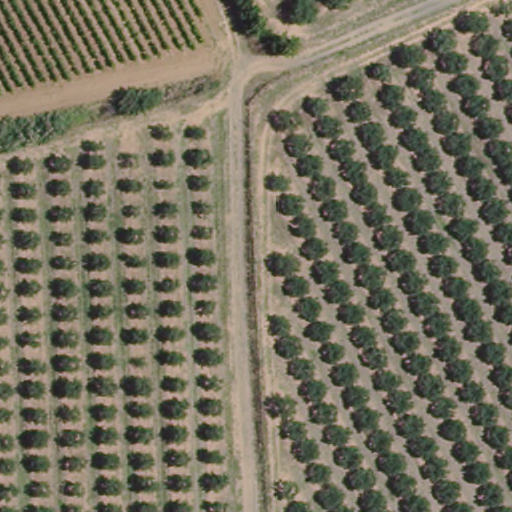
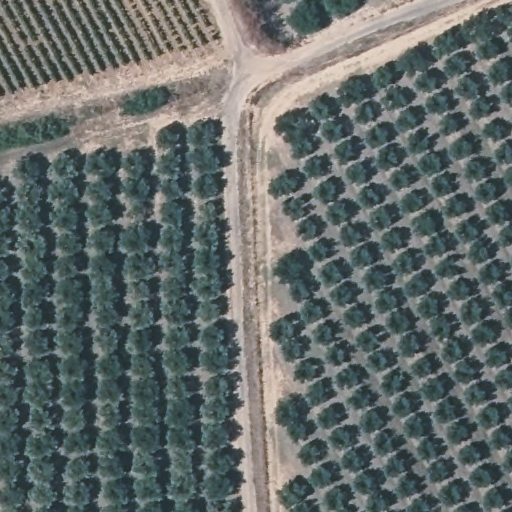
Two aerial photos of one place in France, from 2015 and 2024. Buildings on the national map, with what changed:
unchanged [(223,114),(203,117),(201,100),(220,96),(223,114)]

